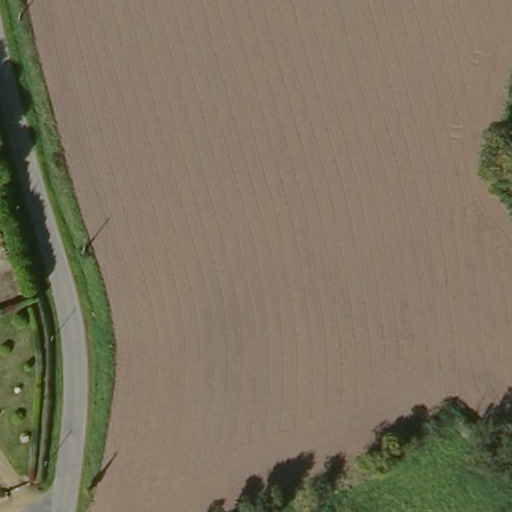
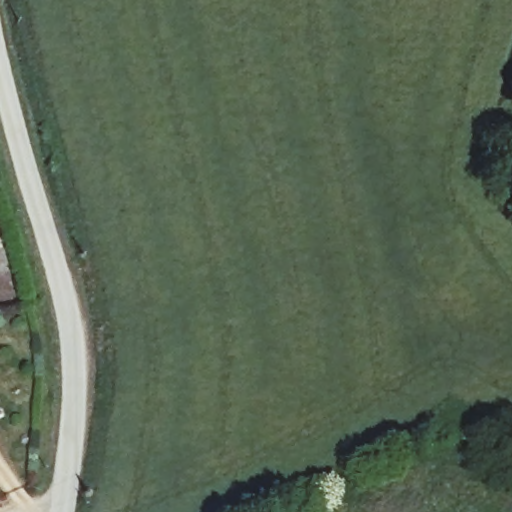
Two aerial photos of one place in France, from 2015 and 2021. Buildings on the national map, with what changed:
unchanged [(491,180),(486,174),(499,167),(502,172),(491,180)]

